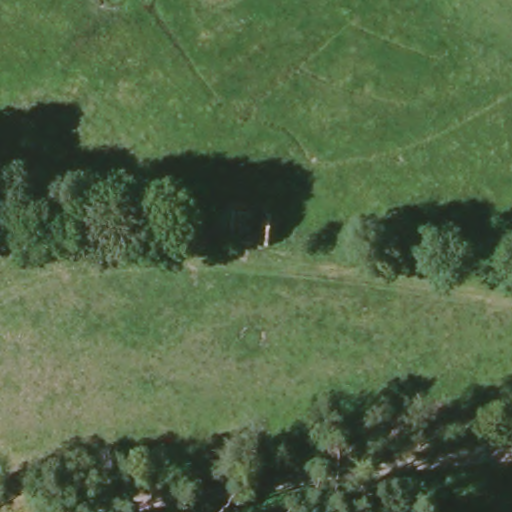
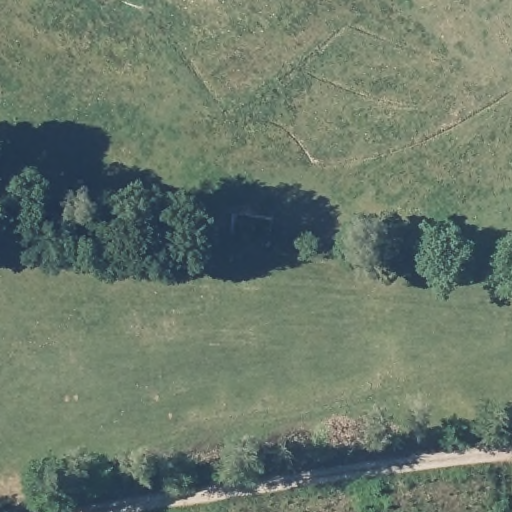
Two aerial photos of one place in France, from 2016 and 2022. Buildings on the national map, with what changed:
unchanged [(264,217),(262,247),(224,244),(226,214),(264,217)]

